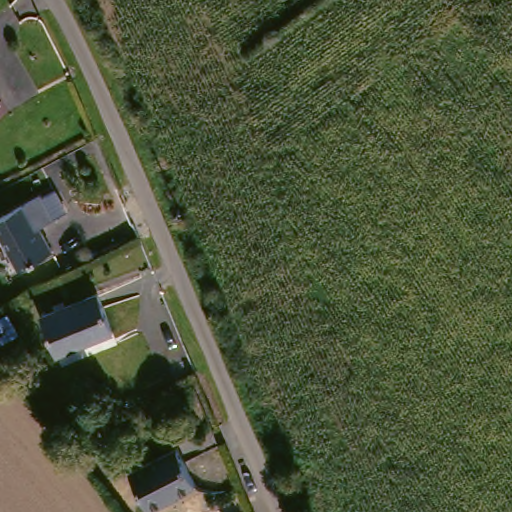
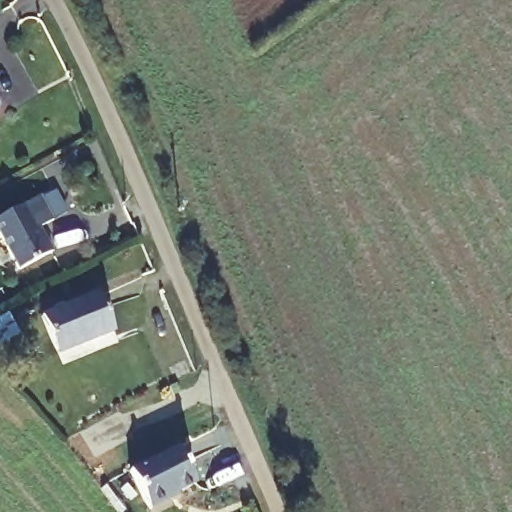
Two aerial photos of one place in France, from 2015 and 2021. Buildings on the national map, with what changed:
unchanged [(50,252),(50,254),(17,272),(0,239),(0,218),(39,198),(52,222),(38,230),(50,252)]
unchanged [(98,293),(113,332),(57,355),(42,316),(98,293)]
unchanged [(18,333),(0,343),(0,318),(8,313),(18,333)]
unchanged [(177,447),(195,484),(169,497),(170,500),(150,510),(130,471),(177,447)]

